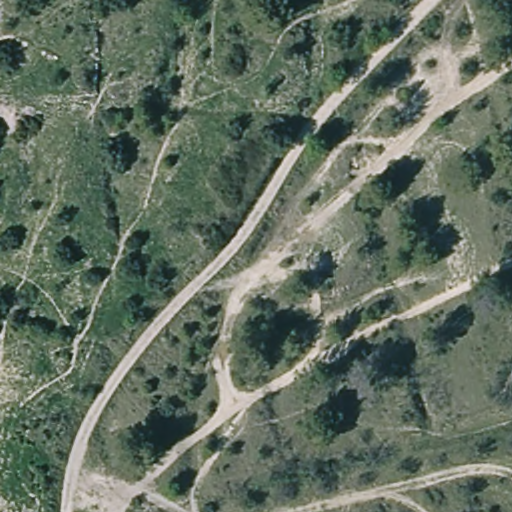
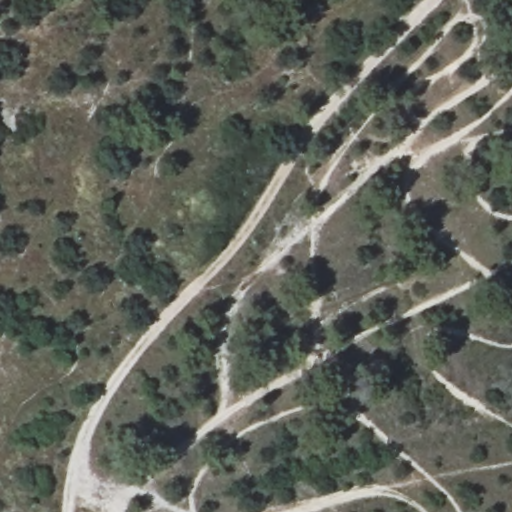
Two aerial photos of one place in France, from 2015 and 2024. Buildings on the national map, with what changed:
unchanged [(143,440),(162,438),(162,453),(143,455),(143,446),(143,440)]

